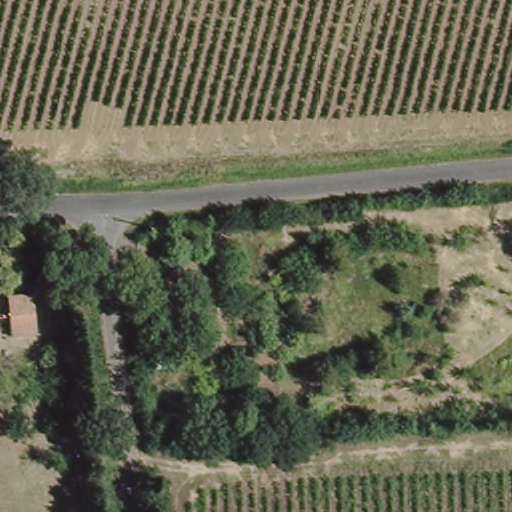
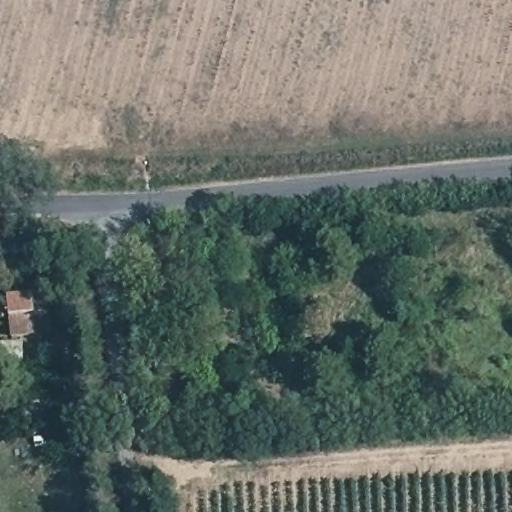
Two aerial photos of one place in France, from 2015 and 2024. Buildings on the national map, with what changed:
unchanged [(22,331),(19,311),(0,314),(0,293),(17,291),(42,289),(45,308),(47,328),(22,331)]
unchanged [(192,360),(193,370),(160,374),(160,364),(192,360)]

